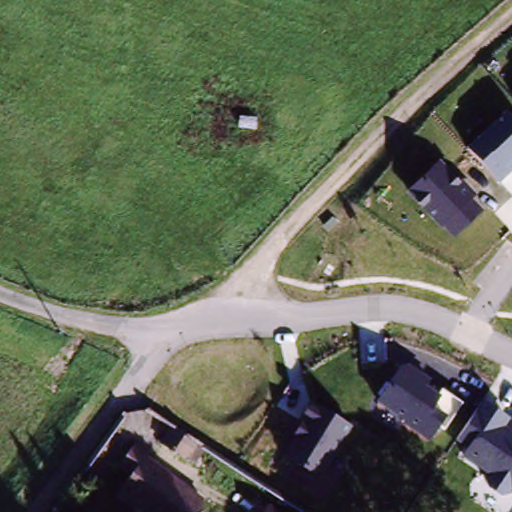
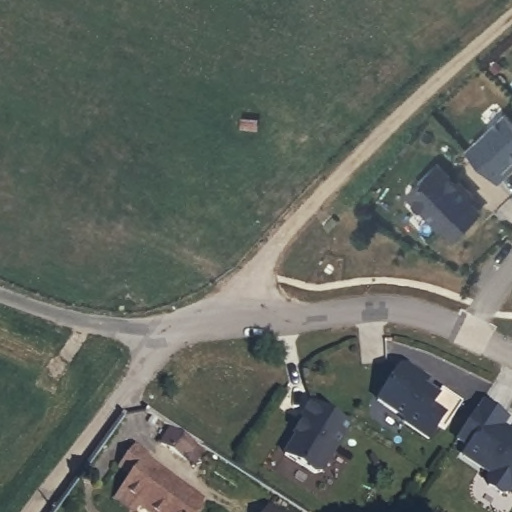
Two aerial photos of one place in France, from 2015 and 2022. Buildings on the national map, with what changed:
unchanged [(506,112),(512,119),(512,169),(498,182),(468,146),(506,112)]
unchanged [(441,162),(476,195),(471,200),(481,210),(451,236),(407,190),(441,162)]
unchanged [(463,403),(444,427),(438,424),(429,439),(378,404),(404,363),(463,403)]
unchanged [(510,490),(502,495),(487,485),(489,472),(456,450),(488,403),(512,417),(512,492),(510,490)]
unchanged [(353,427),(321,483),(282,460),(313,406),(353,427)]
unchanged [(201,463),(194,458),(169,442),(179,427),(204,442),(211,447),(201,463)]
unchanged [(126,488),(138,472),(126,464),(141,444),(153,452),(150,455),(210,498),(200,512),(159,512),(148,504),(143,510),(121,495),(126,488)]

